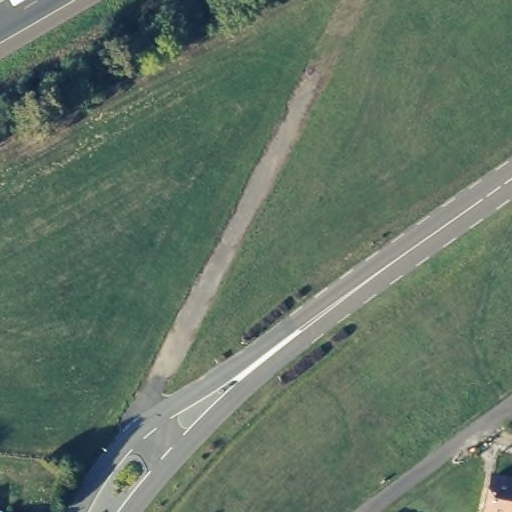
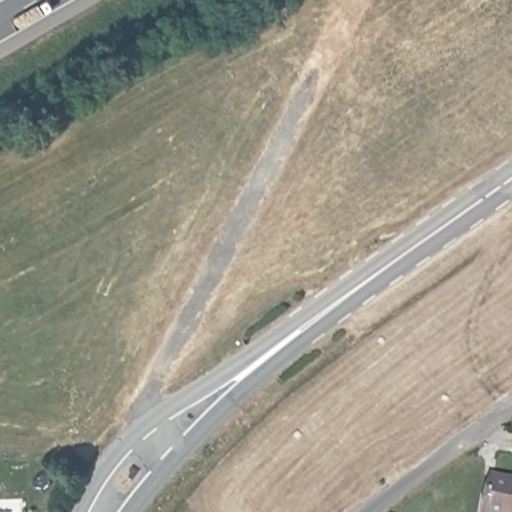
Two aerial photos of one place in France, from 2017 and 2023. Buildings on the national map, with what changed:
unchanged [(512,480),(512,512),(484,512),(490,476),(512,480)]

